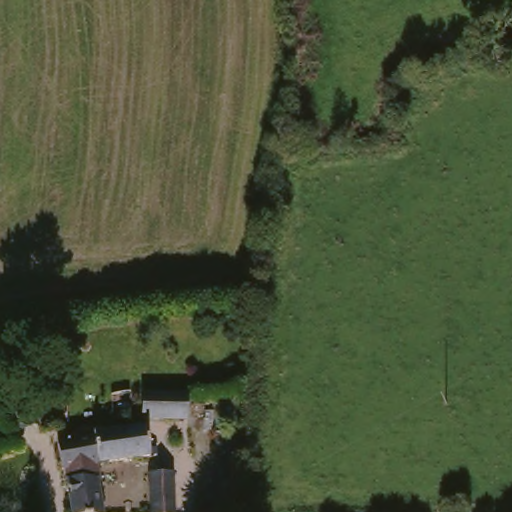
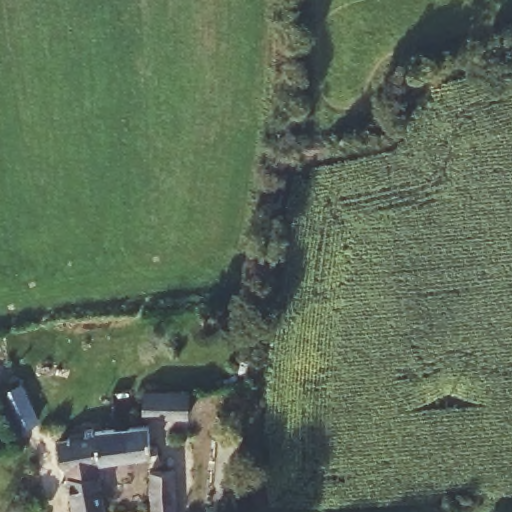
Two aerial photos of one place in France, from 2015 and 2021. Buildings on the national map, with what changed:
unchanged [(141,414),(139,390),(186,387),(186,411),(141,414)]
unchanged [(86,480),(98,478),(98,512),(69,512),(66,483),(60,439),(116,431),(150,426),(152,453),(84,464),(86,480)]
unchanged [(150,512),(151,475),(176,473),(178,512),(150,512)]

